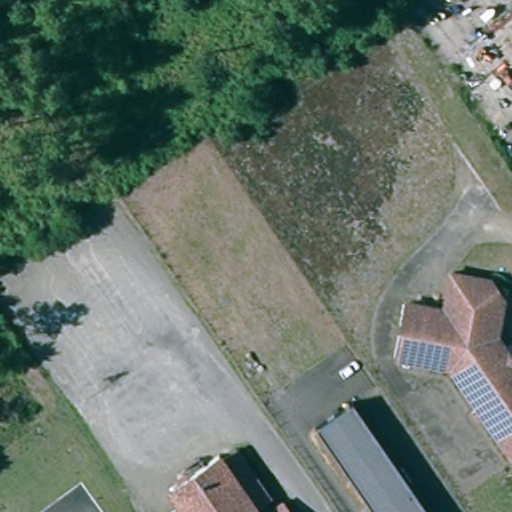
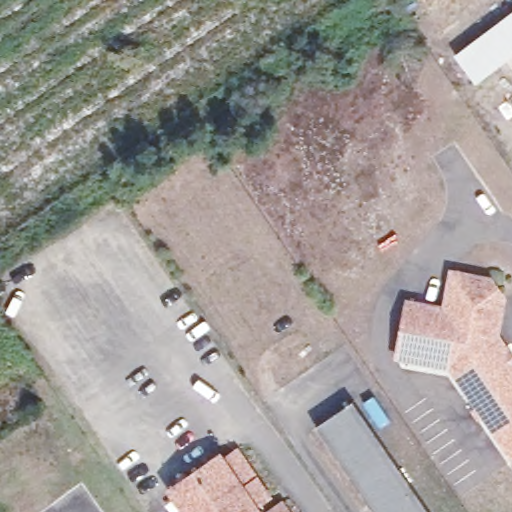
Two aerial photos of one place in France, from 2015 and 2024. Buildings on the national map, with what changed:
new [(512,55),(475,82),(455,55),(512,11),(512,55)]
unchanged [(398,351),(408,296),(446,302),(452,266),(492,272),(505,292),(496,341),(501,349),(508,344),(512,349),(512,448),(452,361),(398,351)]
unchanged [(329,435),(321,424),(358,398),(366,410),(436,512),(381,512),(329,435)]
unchanged [(174,492),(224,457),(246,490),(260,481),(262,486),(274,502),(261,512),(188,512),(174,492)]
unchanged [(287,505),(293,512),(277,512),(287,505)]

